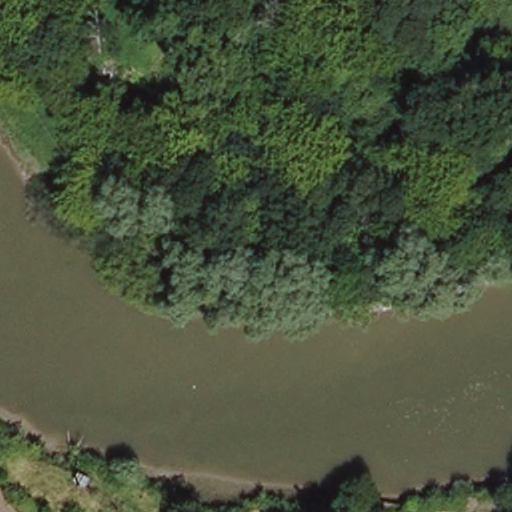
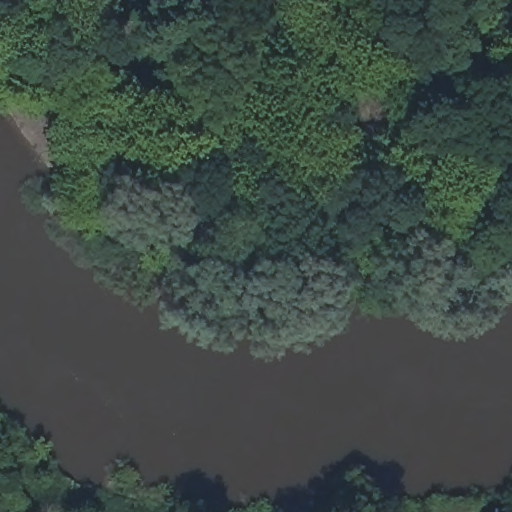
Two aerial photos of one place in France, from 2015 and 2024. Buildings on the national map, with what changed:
unchanged [(20,101),(1,77),(25,57),(46,85),(20,101)]

